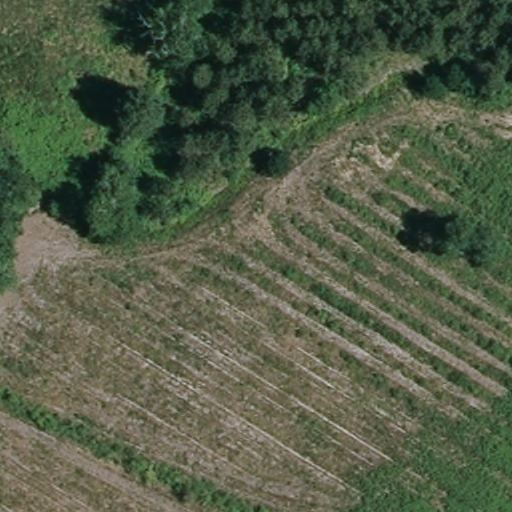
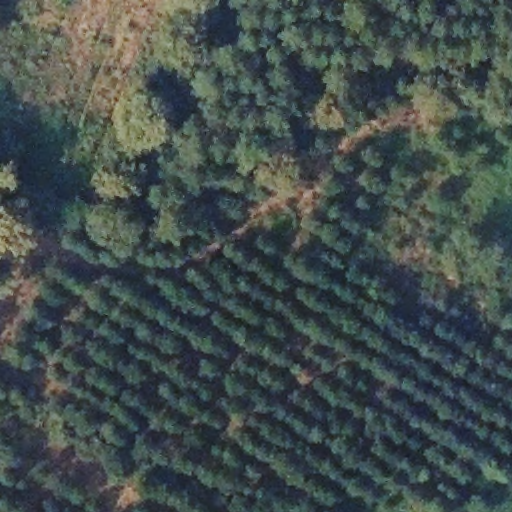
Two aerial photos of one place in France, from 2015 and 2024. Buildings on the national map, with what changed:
[]

